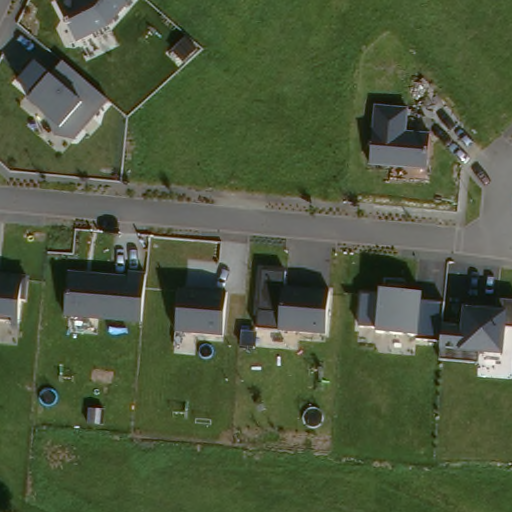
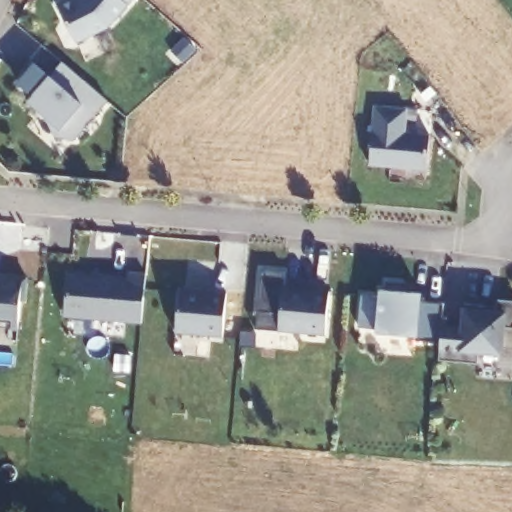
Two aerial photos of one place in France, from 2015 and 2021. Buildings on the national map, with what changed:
unchanged [(77,41),(60,0),(132,0),(112,26),(77,41)]
unchanged [(110,98),(76,135),(65,125),(31,100),(53,75),(69,58),(110,98)]
unchanged [(372,161),(377,103),(413,106),(412,130),(433,132),(430,167),(372,161)]
unchanged [(145,321),(67,313),(72,266),(149,274),(145,321)]
unchanged [(330,333),(261,324),(263,269),(288,269),(288,285),(335,289),(330,333)]
unchanged [(21,326),(0,326),(0,273),(25,273),(21,326)]
unchanged [(227,334),(179,329),(183,286),(232,290),(227,334)]
unchanged [(382,295),(382,287),(426,290),(426,298),(446,300),(445,323),(464,325),(467,304),(498,307),(500,297),(512,299),(512,327),(506,327),(503,349),(480,349),(477,361),(442,357),(442,337),(362,329),(365,293),(382,295)]

